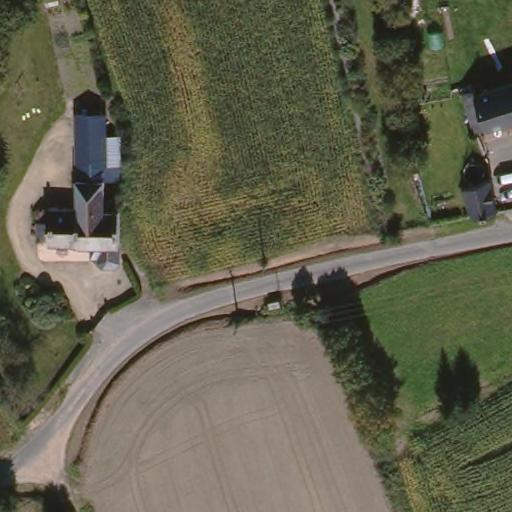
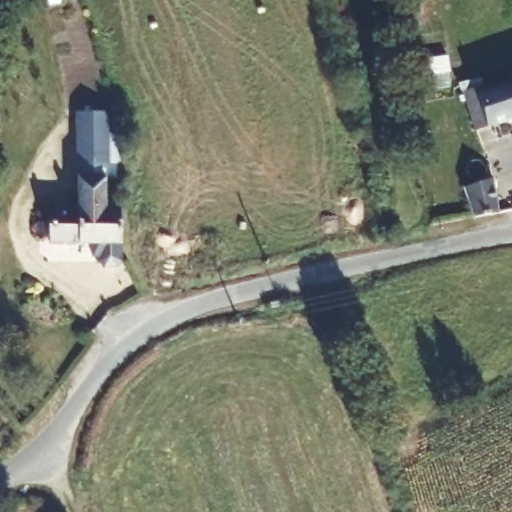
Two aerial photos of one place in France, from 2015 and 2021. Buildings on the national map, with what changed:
unchanged [(467,101),(505,87),(512,86),(512,120),(483,130),(467,101)]
unchanged [(78,160),(78,115),(103,116),(103,133),(122,133),(121,165),(78,160)]
unchanged [(502,211),(471,217),(470,207),(468,183),(499,178),(501,200),(502,211)]
unchanged [(97,276),(85,275),(81,269),(82,263),(75,263),(77,250),(40,243),(42,233),(24,230),(27,210),(46,214),(48,203),(76,208),(82,179),(110,184),(105,215),(118,217),(108,256),(103,270),(97,276)]

